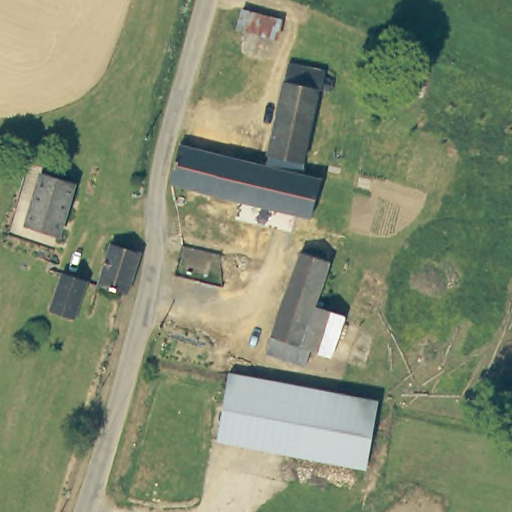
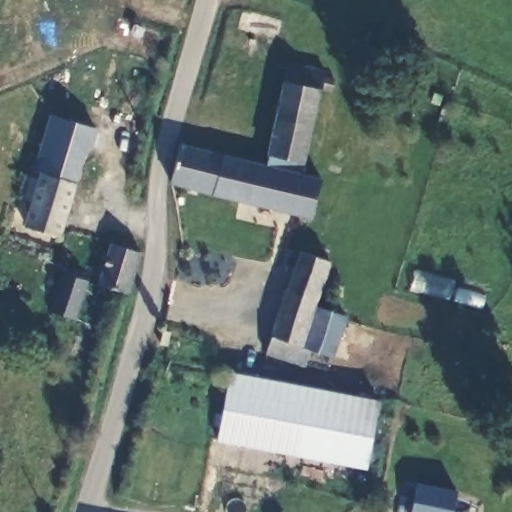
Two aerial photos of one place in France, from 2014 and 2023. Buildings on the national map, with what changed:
unchanged [(176,155),(178,145),(189,147),(265,165),(287,64),(324,71),(324,76),(333,78),(330,90),(318,88),(300,174),(321,180),(311,216),(180,184),(169,181),(176,155)]
new [(49,112),(97,128),(90,150),(85,150),(74,183),(40,171),(40,173),(31,170),(49,112)]
unchanged [(40,171),(74,183),(58,236),(24,226),(40,171)]
unchanged [(139,252),(126,293),(97,285),(110,242),(127,248),(139,252)]
unchanged [(330,352),(308,346),(304,362),(265,348),(300,246),(329,255),(314,300),(344,310),(343,315),(330,352)]
unchanged [(64,275),(82,280),(70,316),(53,311),(64,275)]
unchanged [(366,459),(365,462),(218,435),(229,372),(377,400),(366,459)]
unchanged [(458,490),(453,512),(409,512),(416,481),(458,490)]

